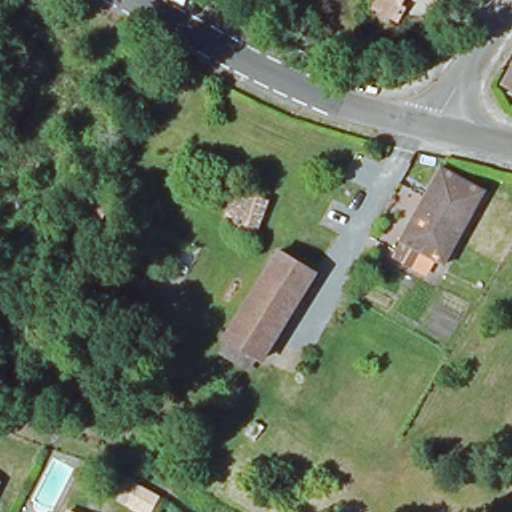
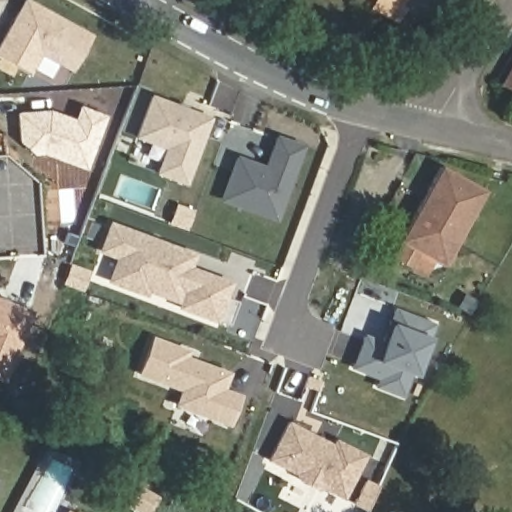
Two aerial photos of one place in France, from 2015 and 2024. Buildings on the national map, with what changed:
new [(21,0),(86,36),(67,70),(36,53),(25,72),(0,58),(0,39),(21,0)]
unchanged [(398,23),(372,9),(378,0),(403,0),(399,6),(406,9),(398,23)]
unchanged [(512,71),(512,91),(503,86),(512,71)]
new [(185,181),(154,170),(163,147),(135,137),(150,96),(209,120),(185,181)]
new [(18,114),(48,112),(75,121),(80,106),(105,115),(86,168),(43,152),(33,155),(20,143),(18,114)]
new [(276,218),(222,197),(237,158),(265,169),(277,138),(303,148),(276,218)]
unchanged [(464,228),(443,266),(401,243),(442,172),(449,175),(483,195),(464,228)]
demolished [(263,214),(252,245),(230,237),(235,221),(225,217),(230,201),(263,214)]
new [(108,281),(114,267),(118,257),(100,250),(110,225),(189,255),(181,277),(192,282),(195,272),(226,284),(213,320),(179,307),(185,292),(179,289),(174,300),(144,289),(147,280),(142,293),(108,281)]
demolished [(313,277),(262,362),(227,341),(255,296),(279,256),(313,277)]
new [(225,325),(213,320),(221,297),(235,302),(225,325)]
new [(26,313),(0,376),(0,302),(26,313)]
new [(378,343),(382,332),(385,325),(391,308),(431,323),(412,374),(408,373),(399,396),(373,386),(376,378),(349,367),(360,336),(378,343)]
new [(151,338),(185,352),(183,358),(226,374),(220,390),(237,397),(227,424),(175,405),(180,390),(137,373),(151,338)]
new [(305,433),(316,438),(330,446),(333,441),(362,456),(340,499),(320,488),(313,489),(296,480),(292,474),(266,460),(286,423),(305,433)]
unchanged [(161,496),(153,512),(133,512),(123,507),(135,482),(161,496)]

